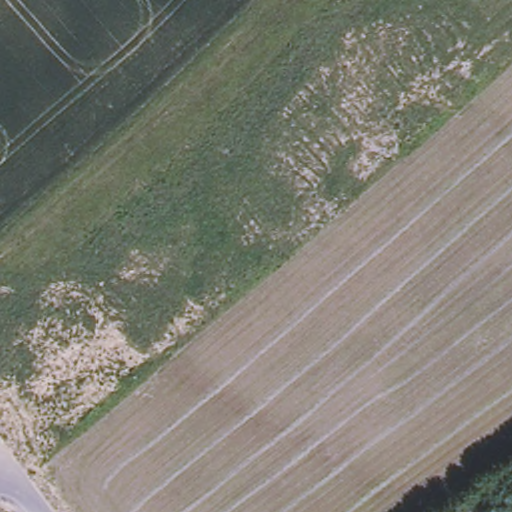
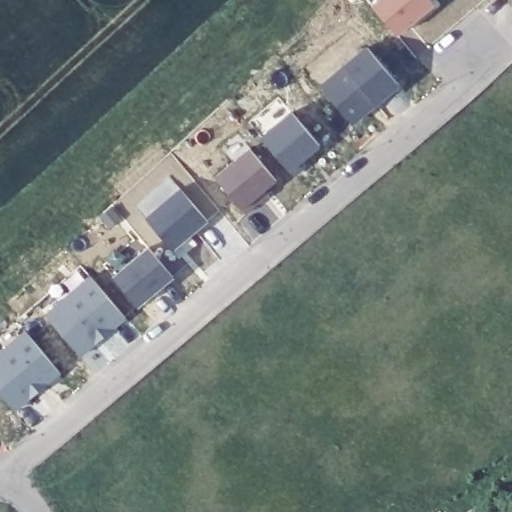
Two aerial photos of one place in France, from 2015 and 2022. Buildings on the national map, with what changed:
new [(398,35),(372,6),(379,0),(432,0),(435,4),(398,35)]
new [(402,86),(353,125),(318,87),(367,46),(402,86)]
new [(322,145),(305,159),(309,164),(295,176),(290,169),(259,138),(288,112),(322,145)]
new [(277,181),(267,189),(270,195),(245,214),(242,209),(212,179),(247,149),(277,181)]
new [(207,219),(170,248),(145,218),(180,189),(207,219)]
new [(125,219),(110,231),(101,219),(115,208),(125,219)]
new [(175,276),(138,305),(112,276),(147,246),(175,276)]
new [(125,318),(82,355),(46,315),(92,278),(125,318)]
new [(63,373),(15,412),(0,394),(0,352),(26,330),(63,373)]
unchanged [(491,512),(474,512),(487,504),(491,512)]

